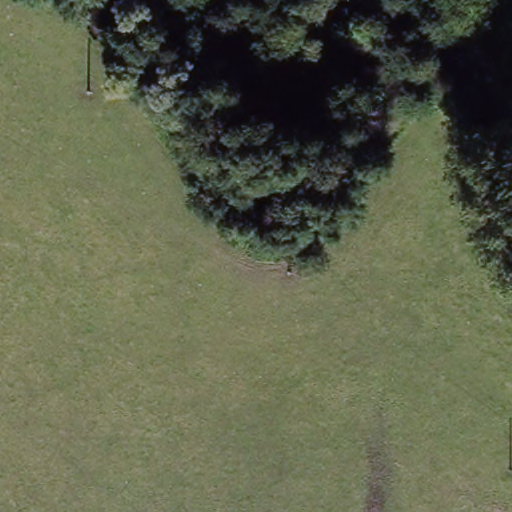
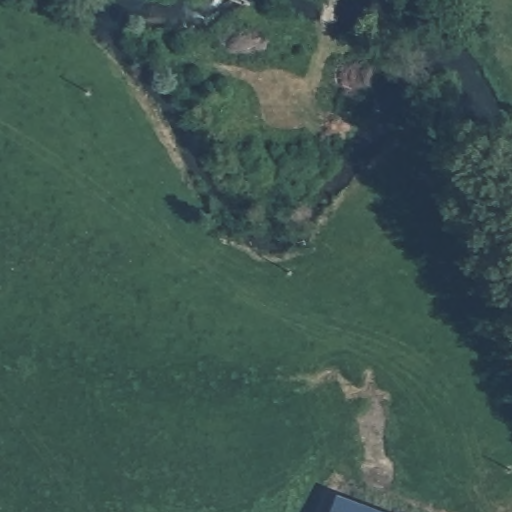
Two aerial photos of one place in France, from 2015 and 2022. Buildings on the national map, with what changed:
new [(330,512),(338,494),(386,512),(330,512)]

